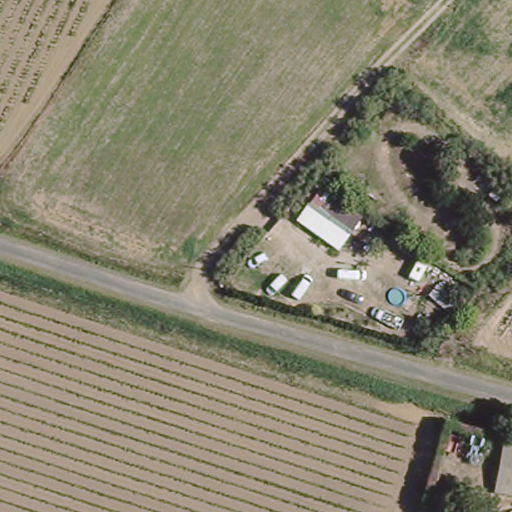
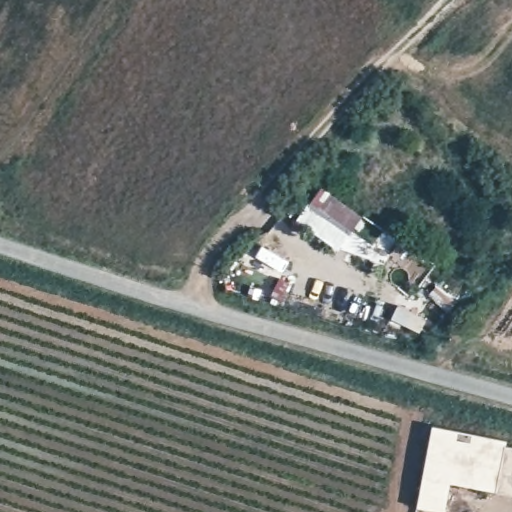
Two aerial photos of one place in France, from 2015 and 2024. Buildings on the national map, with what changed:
new [(297,220),(323,186),(364,216),(339,251),(297,220)]
new [(495,491),(452,483),(446,512),(439,512),(418,507),(434,425),(506,440),(504,443),(495,491)]
unchanged [(495,491),(504,443),(512,445),(512,495),(495,491)]

